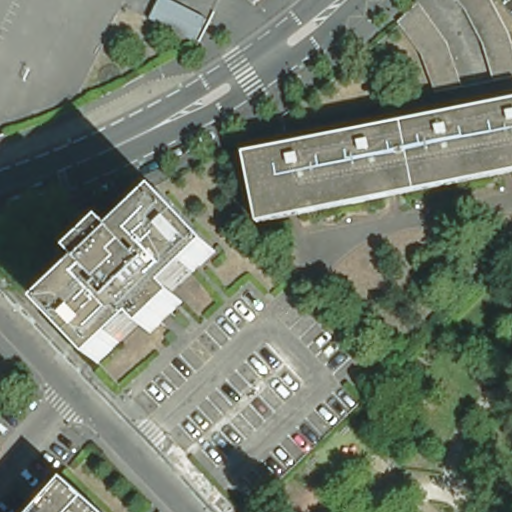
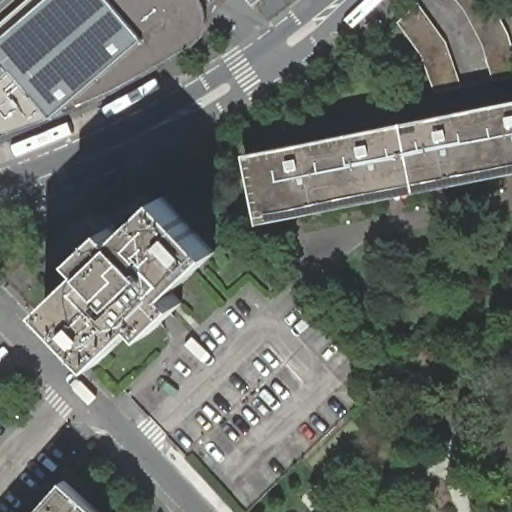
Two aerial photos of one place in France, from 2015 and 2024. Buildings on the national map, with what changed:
new [(202,2),(206,14),(203,30),(194,46),(161,64),(47,120),(0,134),(0,22),(26,0),(199,0),(202,2)]
demolished [(205,18),(194,41),(146,19),(155,0),(168,0),(205,18)]
unchanged [(251,3),(248,0),(254,0),(251,3)]
unchanged [(481,46),(465,10),(457,0),(491,0),(508,33),(512,45),(512,77),(493,81),(481,46)]
unchanged [(435,93),(421,55),(397,22),(418,3),(446,42),(462,87),(435,93)]
unchanged [(245,154),(280,147),(285,146),(375,128),(381,127),(422,119),(428,118),(493,105),(499,104),(512,101),(512,173),(504,174),(443,186),(432,189),(399,195),(388,197),(300,215),(290,217),(258,223),(245,154)]
unchanged [(205,266),(200,270),(177,292),(187,302),(176,313),(166,322),(155,333),(145,323),(105,362),(50,308),(65,294),(69,289),(92,268),(82,257),(94,246),(104,236),(115,226),(125,237),(158,205),(167,197),(167,196),(221,251),(205,266)]
unchanged [(60,485),(91,512),(36,512),(39,509),(60,485)]

